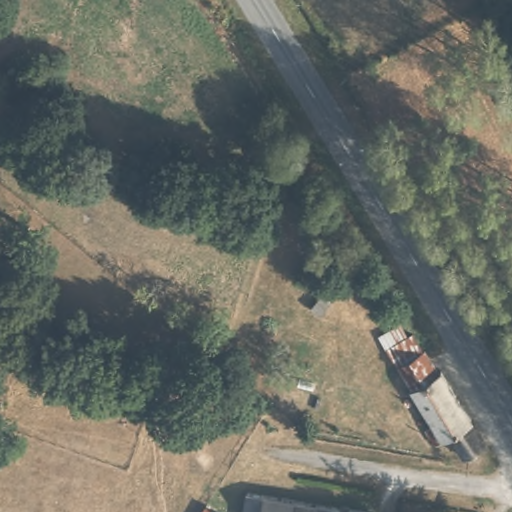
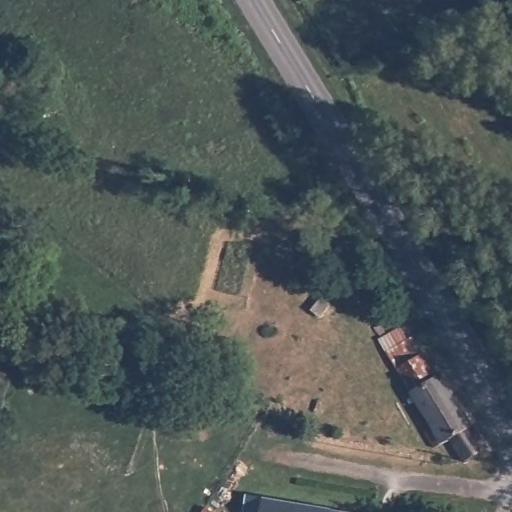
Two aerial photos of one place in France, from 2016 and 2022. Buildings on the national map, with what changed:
unchanged [(410,388),(383,347),(411,331),(438,371),(410,388)]
unchanged [(450,434),(432,444),(423,428),(432,422),(410,388),(438,371),(487,443),(463,458),(450,434)]
unchanged [(371,512),(244,512),(249,491),(371,512)]
unchanged [(219,512),(199,512),(205,502),(219,512)]

